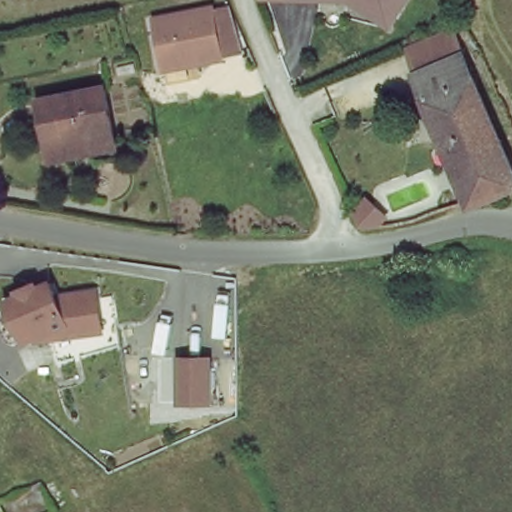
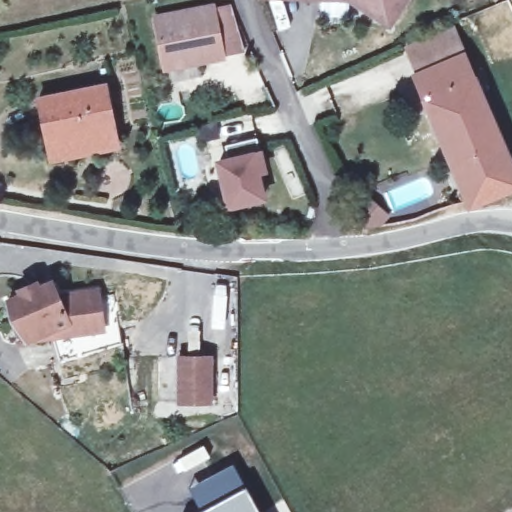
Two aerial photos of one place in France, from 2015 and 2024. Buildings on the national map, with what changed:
unchanged [(358,0),(398,0),(386,17),(358,0)]
unchanged [(215,2),(217,9),(226,54),(168,65),(159,24),(157,15),(215,2)]
unchanged [(396,46),(448,28),(459,50),(408,72),(396,46)]
unchanged [(512,170),(512,186),(467,203),(408,72),(459,50),(512,170)]
unchanged [(51,146),(39,96),(105,81),(121,145),(95,152),(55,162),(51,146)]
new [(267,201),(226,211),(214,160),(227,157),(225,146),(257,139),(258,150),(262,150),(267,172),(260,174),(267,201)]
unchanged [(30,286),(33,293),(52,285),(55,292),(94,287),(95,294),(99,325),(93,328),(92,328),(69,331),(65,322),(47,330),(32,336),(31,333),(22,337),(5,296),(30,286)]
unchanged [(204,353),(204,398),(174,399),(174,354),(204,353)]
new [(233,461),(246,485),(200,509),(187,486),(233,461)]
demolished [(2,502),(46,482),(60,512),(6,512),(2,502)]
new [(200,509),(246,485),(261,512),(195,512),(200,509)]

